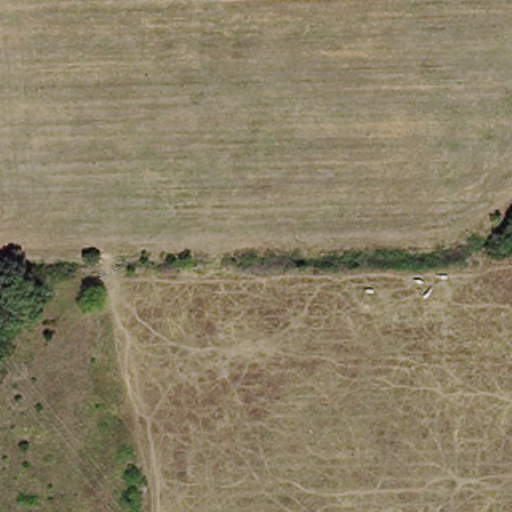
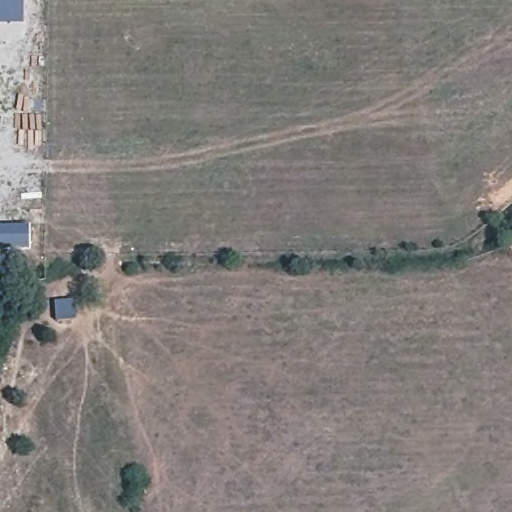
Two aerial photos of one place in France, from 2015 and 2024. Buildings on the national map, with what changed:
new [(23,23),(0,23),(0,0),(23,0),(23,23)]

